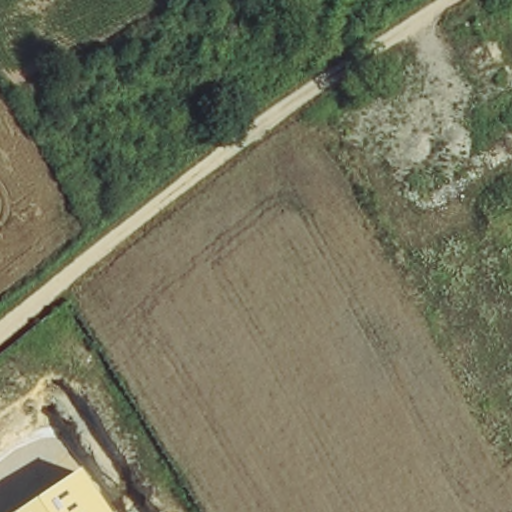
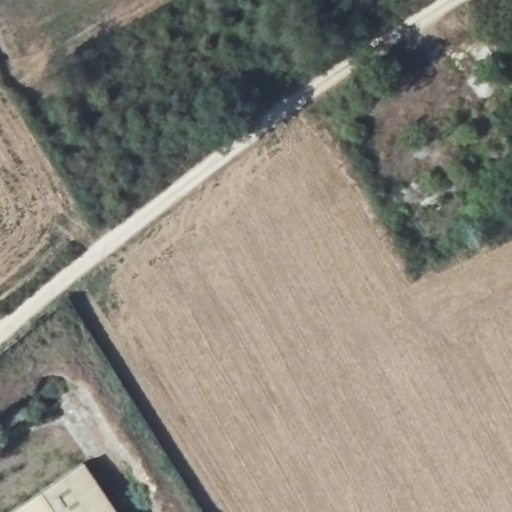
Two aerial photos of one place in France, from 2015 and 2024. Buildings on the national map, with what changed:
unchanged [(115,512),(11,512),(83,464),(115,512)]

